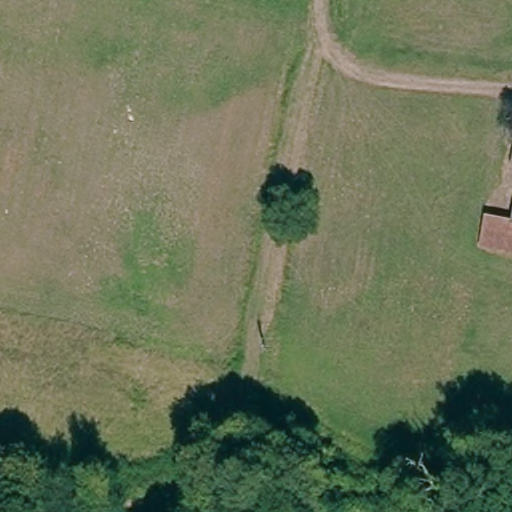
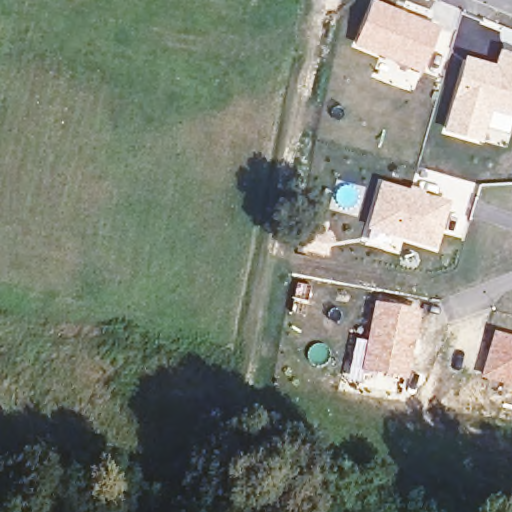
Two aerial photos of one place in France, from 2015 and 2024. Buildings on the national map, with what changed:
new [(439,29),(421,75),(352,46),(372,1),(439,29)]
new [(464,55),(493,64),(498,49),(512,53),(512,120),(492,115),(482,144),(441,132),(464,55)]
new [(409,191),(409,187),(424,191),(422,195),(449,202),(437,249),(366,229),(379,182),(409,191)]
demolished [(511,220),(512,214),(512,220),(511,220)]
demolished [(475,242),(479,228),(488,230),(512,235),(512,250),(483,244),(475,242)]
new [(420,311),(408,379),(362,372),(374,302),(420,311)]
new [(493,331),(512,336),(512,387),(480,377),(493,331)]

